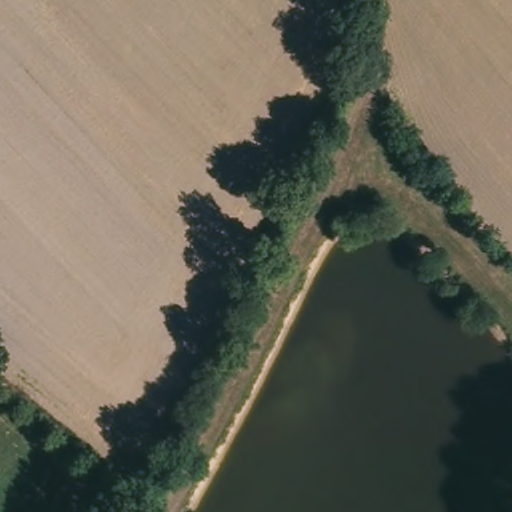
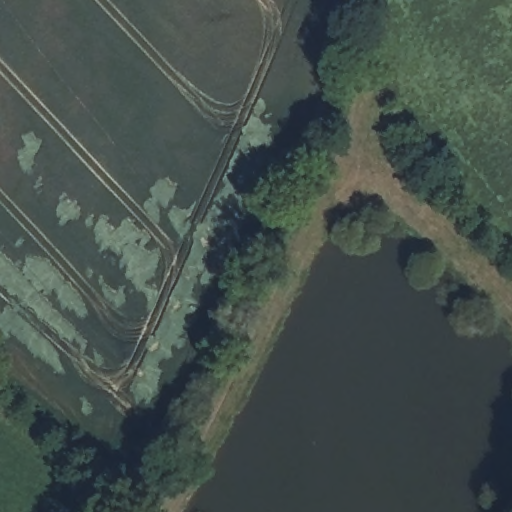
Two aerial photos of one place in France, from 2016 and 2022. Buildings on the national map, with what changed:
[]

